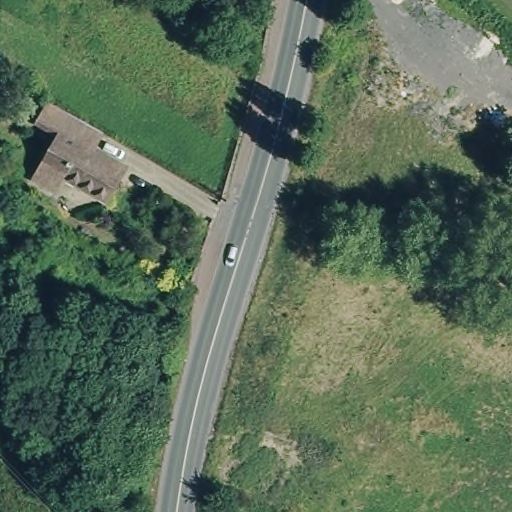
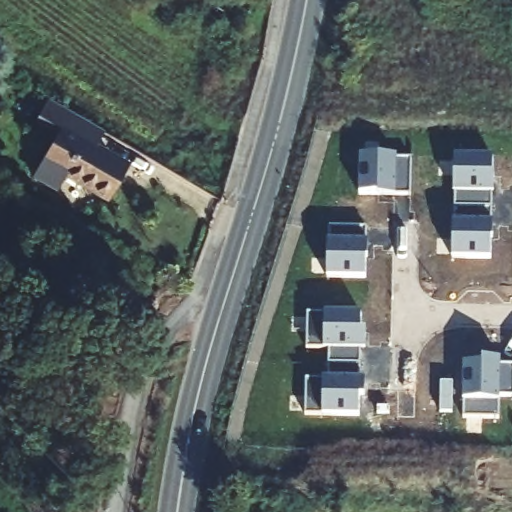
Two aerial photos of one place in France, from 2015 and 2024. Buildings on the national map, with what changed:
unchanged [(116,192),(104,214),(63,191),(54,205),(32,193),(60,144),(41,133),(52,117),(69,127),(100,145),(92,161),(124,179),(116,192)]
new [(409,195),(359,192),(361,154),(411,157),(409,195)]
new [(494,195),(490,194),(489,224),(494,225),(494,239),(492,239),(491,260),(450,258),(454,156),(494,157),(494,195)]
new [(364,279),(324,278),(326,227),(366,227),(364,279)]
new [(361,332),(368,332),(366,351),(359,351),(359,380),(366,380),(366,396),(361,396),(361,417),(304,416),(305,382),(323,383),(323,379),(327,379),(329,351),(305,350),(306,316),(323,316),(323,312),(361,314),(361,332)]
new [(498,420),(463,419),(463,364),(482,363),(482,359),(500,360),(499,366),(512,366),(512,397),(499,397),(498,420)]
demolished [(289,454),(270,508),(229,495),(246,441),(289,454)]

